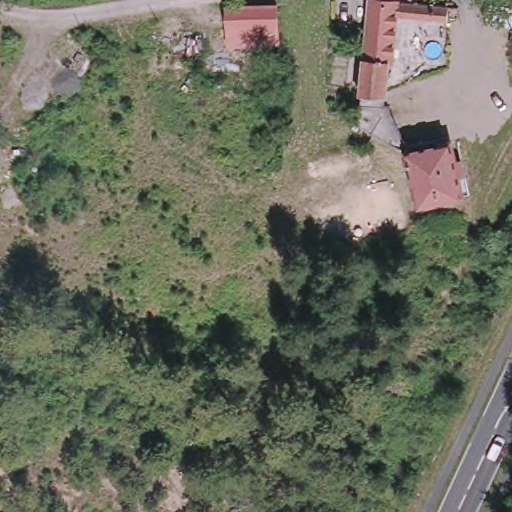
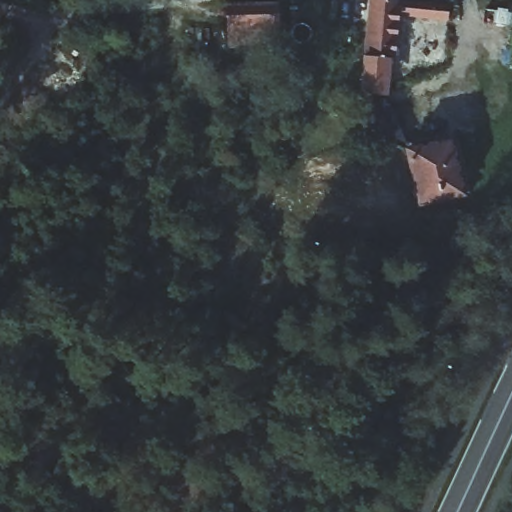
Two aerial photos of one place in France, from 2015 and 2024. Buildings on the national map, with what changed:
unchanged [(258,2),(274,0),(285,0),(287,35),(240,38),(238,3),(258,2)]
unchanged [(455,4),(453,12),(447,12),(445,21),(395,17),(383,106),(388,107),(405,141),(400,147),(358,122),(371,0),(418,0),(455,4)]
unchanged [(512,21),(512,38),(492,36),(492,19),(512,21)]
unchanged [(450,139),(462,188),(420,198),(408,150),(450,139)]

